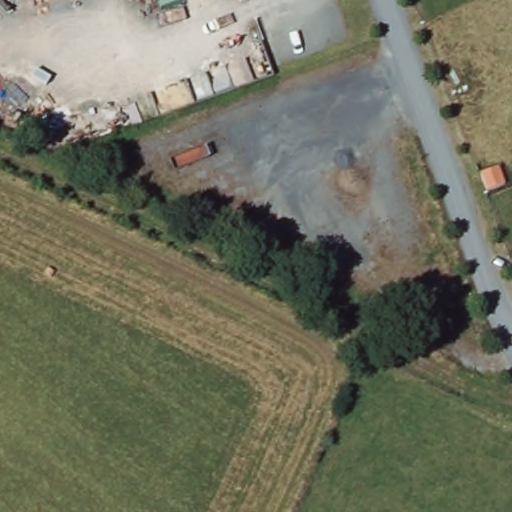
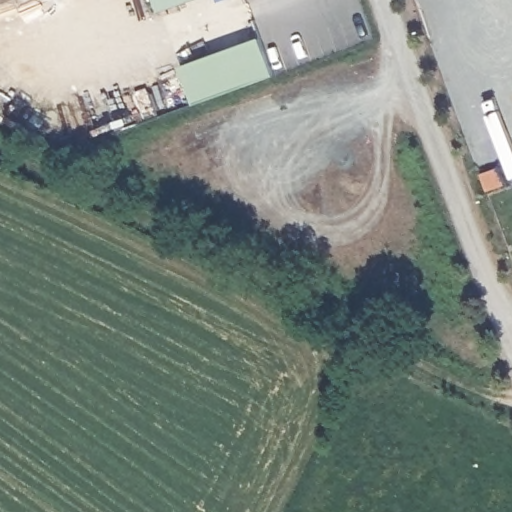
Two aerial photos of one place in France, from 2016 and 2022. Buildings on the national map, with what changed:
unchanged [(160,10),(157,0),(189,0),(160,10)]
new [(274,73),(193,104),(180,67),(259,36),(274,73)]
unchanged [(493,166),(497,178),(486,182),(482,170),(493,166)]

